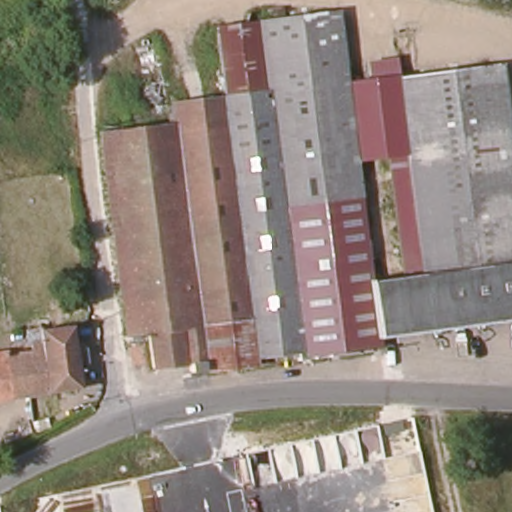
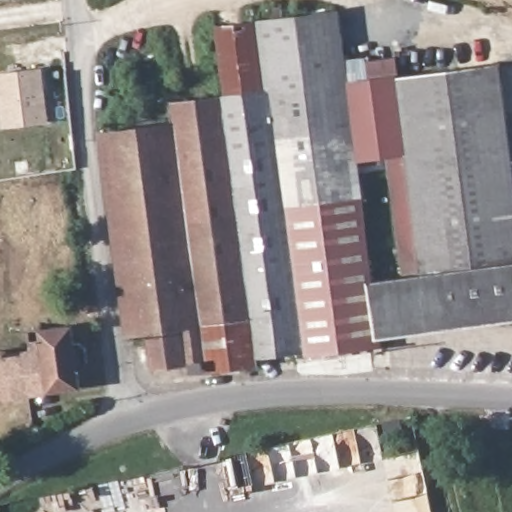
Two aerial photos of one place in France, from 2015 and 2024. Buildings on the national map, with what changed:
unchanged [(135,106),(227,94),(218,20),(269,14),(267,0),(287,0),(289,12),(341,5),(352,81),(433,71),(502,62),(512,135),(512,312),(417,322),(380,326),(382,342),(263,359),(207,367),(205,354),(200,355),(201,365),(192,366),(191,358),(154,362),(149,327),(130,330),(116,212),(106,129),(136,124),(135,106)]
new [(40,71),(46,124),(2,129),(0,102),(0,75),(40,71)]
unchanged [(42,341),(40,325),(72,322),(81,390),(54,395),(0,401),(0,348),(42,341)]

